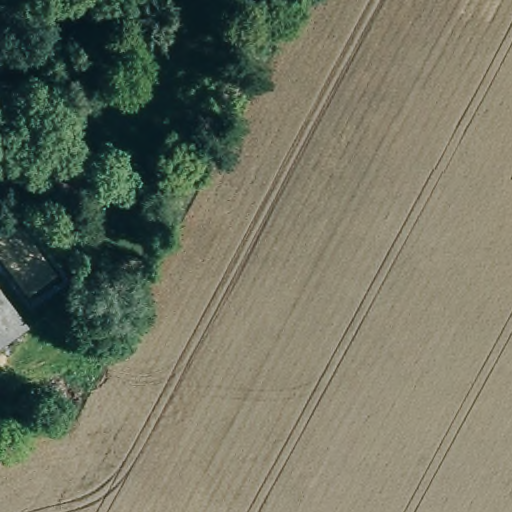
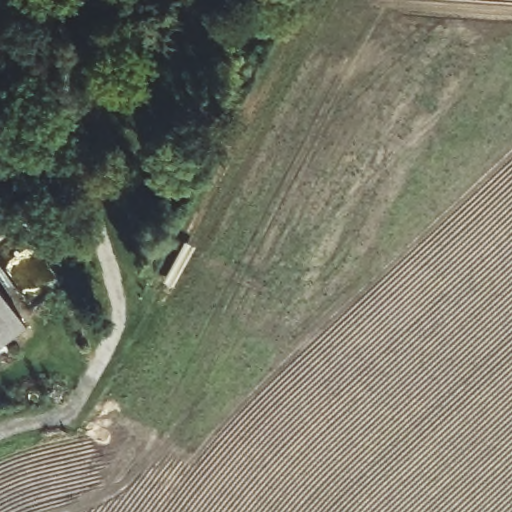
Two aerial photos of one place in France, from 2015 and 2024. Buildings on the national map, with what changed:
unchanged [(0,348),(0,293),(26,330),(0,348)]

